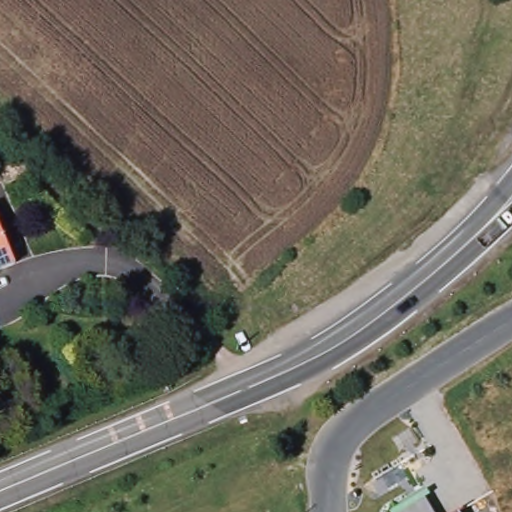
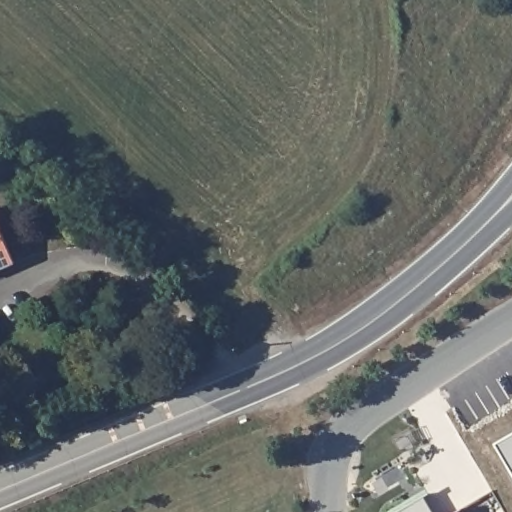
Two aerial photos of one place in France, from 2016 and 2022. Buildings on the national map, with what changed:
unchanged [(15,263),(0,269),(0,228),(15,263)]
new [(512,474),(495,444),(512,434),(512,474)]
unchanged [(433,512),(392,512),(423,495),(433,512)]

